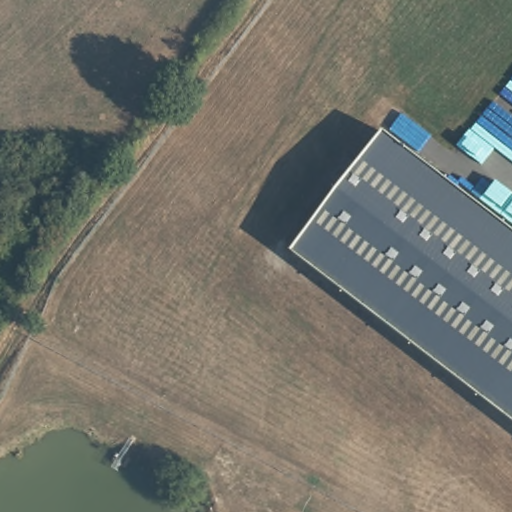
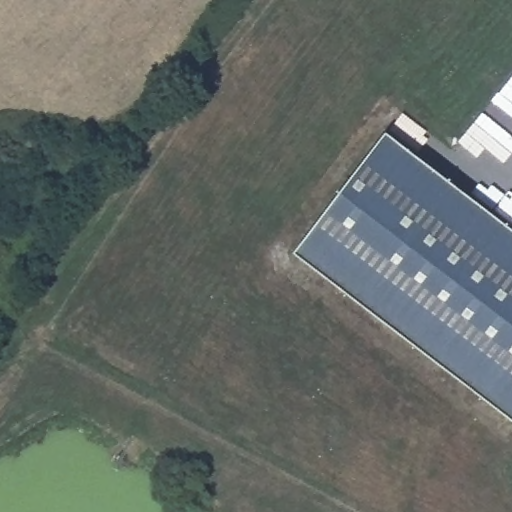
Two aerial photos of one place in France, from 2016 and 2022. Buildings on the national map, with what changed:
unchanged [(295,255),(388,134),(512,228),(512,420),(295,255)]

